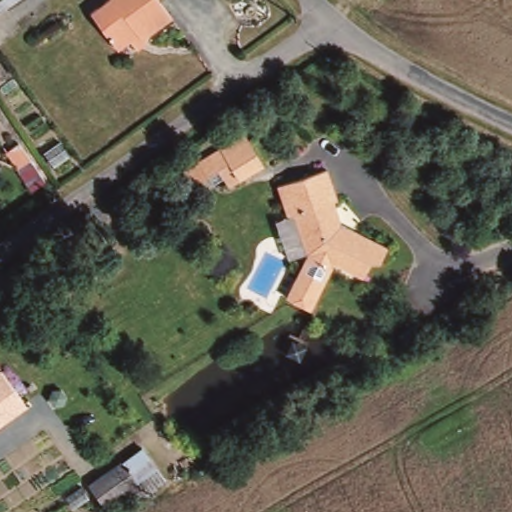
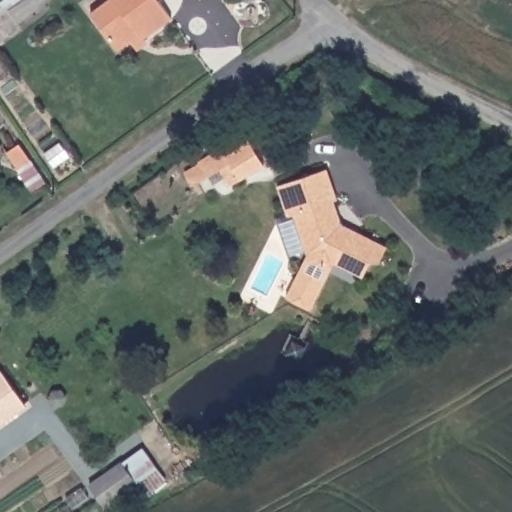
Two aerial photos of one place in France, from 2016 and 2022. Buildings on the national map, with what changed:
unchanged [(140,54),(134,44),(121,52),(94,16),(116,1),(116,0),(160,0),(159,1),(176,20),(145,42),(149,48),(140,54)]
unchanged [(210,167),(231,154),(254,137),(272,162),(247,180),(237,165),(217,177),(210,167)]
unchanged [(20,170),(8,152),(19,145),(31,162),(20,170)]
unchanged [(291,302),(297,290),(313,259),(312,259),(302,214),(292,216),(285,184),(333,174),(341,207),(337,209),(343,231),(351,235),(352,231),(393,252),(385,267),(377,269),(368,283),(340,268),(321,303),(315,315),(291,302)]
unchanged [(29,406),(0,426),(0,376),(6,372),(29,406)]
unchanged [(94,486),(129,462),(149,450),(161,469),(140,482),(106,506),(94,486)]

